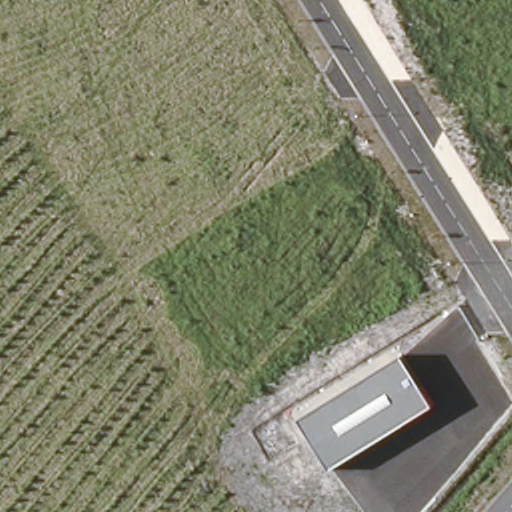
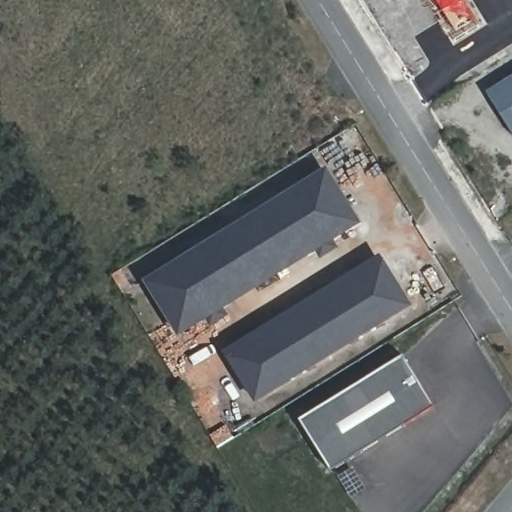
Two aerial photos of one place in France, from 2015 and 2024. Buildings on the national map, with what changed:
new [(512,79),(512,136),(487,95),(512,79)]
new [(143,280),(326,167),(362,224),(178,336),(143,280)]
new [(224,352),(381,255),(412,305),(255,402),(229,358),(224,352)]
unchanged [(332,470),(302,421),(404,355),(436,405),(332,470)]

